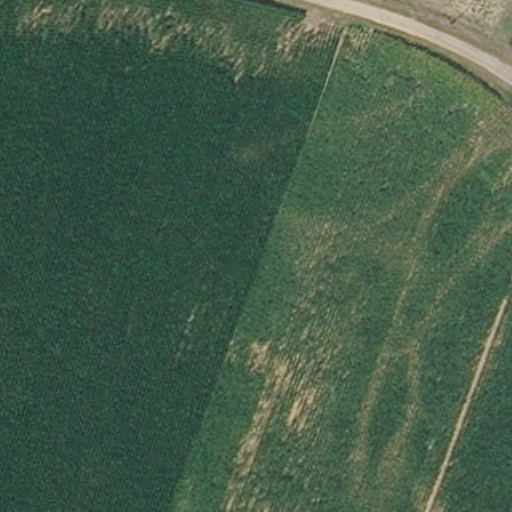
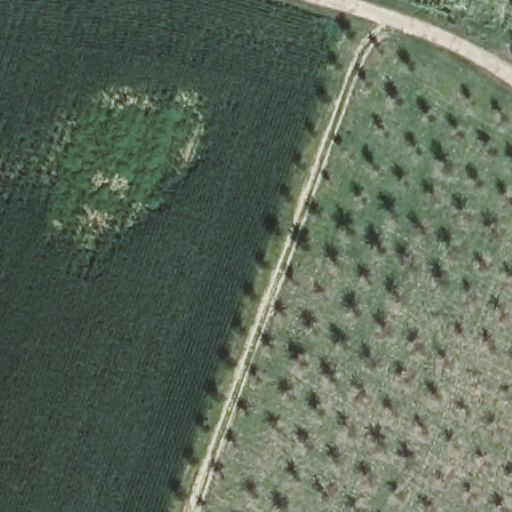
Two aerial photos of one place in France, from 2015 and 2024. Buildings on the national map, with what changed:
[]

